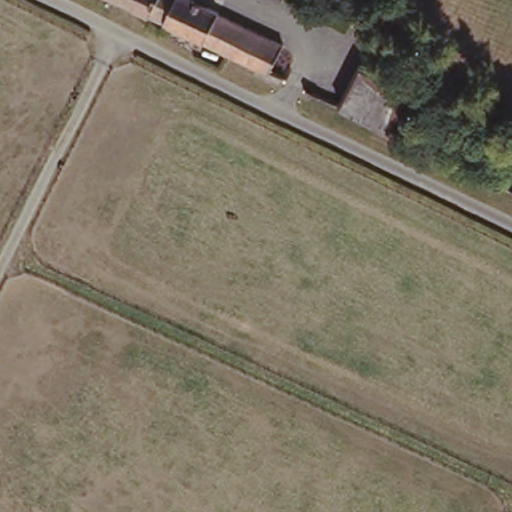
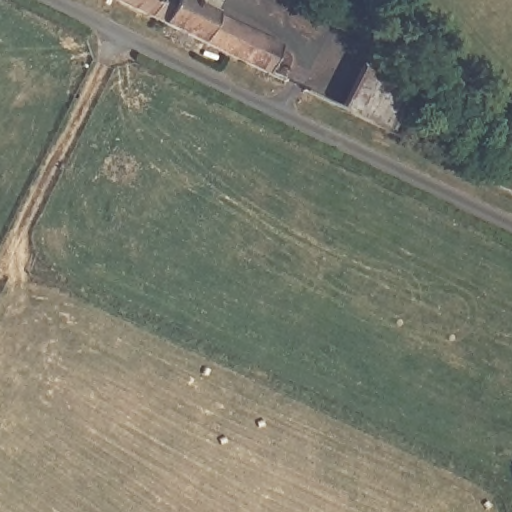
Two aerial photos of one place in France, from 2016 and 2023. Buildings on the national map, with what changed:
unchanged [(276,80),(112,0),(193,0),(290,47),(276,80)]
unchanged [(342,104),(361,67),(415,94),(397,131),(342,104)]

